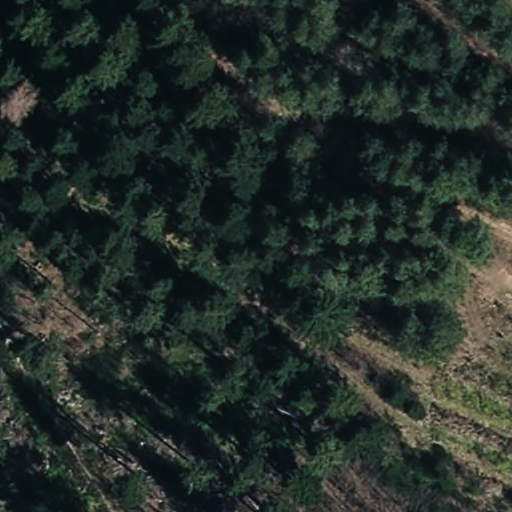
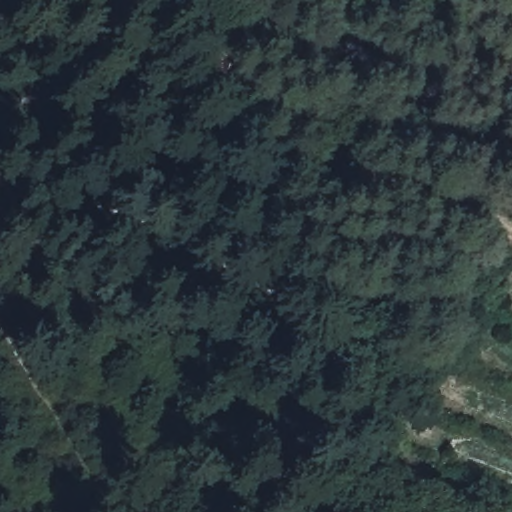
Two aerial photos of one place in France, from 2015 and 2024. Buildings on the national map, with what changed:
[]

